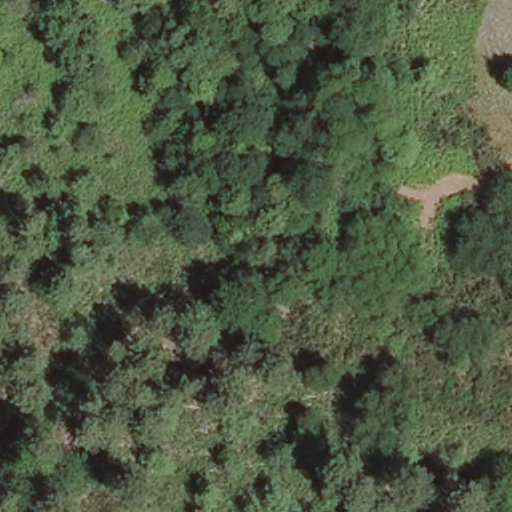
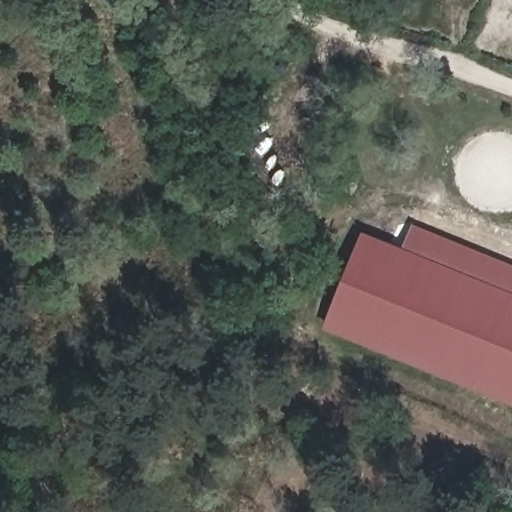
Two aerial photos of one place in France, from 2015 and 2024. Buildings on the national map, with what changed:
new [(512,291),(512,403),(323,325),(362,232),(512,291)]

